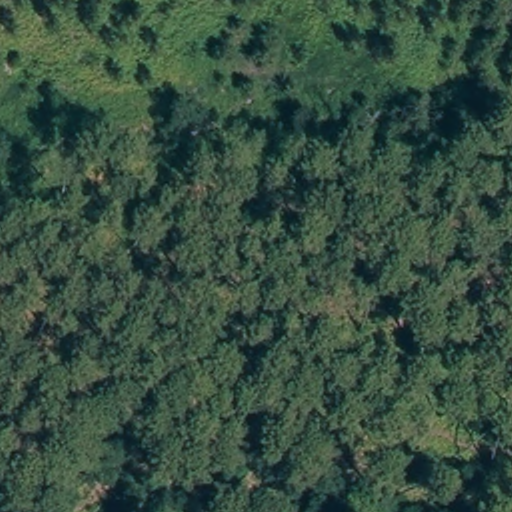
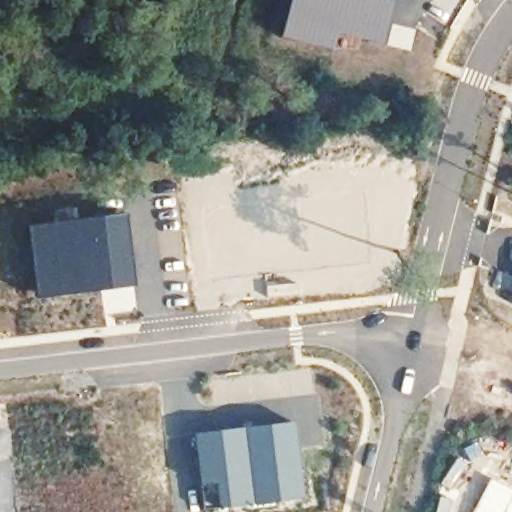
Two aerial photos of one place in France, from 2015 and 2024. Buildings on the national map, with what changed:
new [(288,0),(397,0),(385,46),(337,34),(332,50),(279,36),(288,0)]
new [(28,226),(127,214),(135,286),(39,298),(28,226)]
new [(292,420),(302,474),(304,499),(200,510),(190,432),(292,420)]
new [(512,489),(512,512),(472,512),(490,478),(512,489)]

